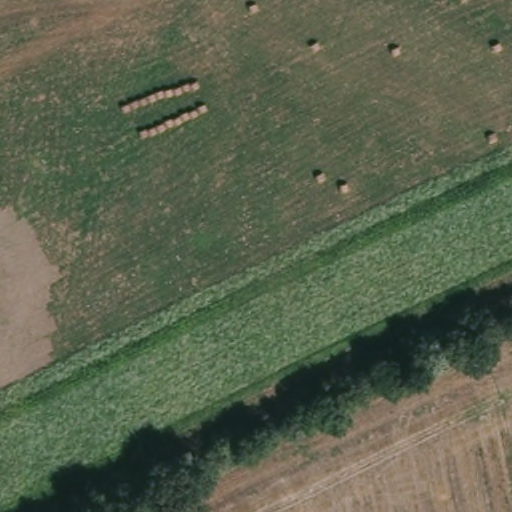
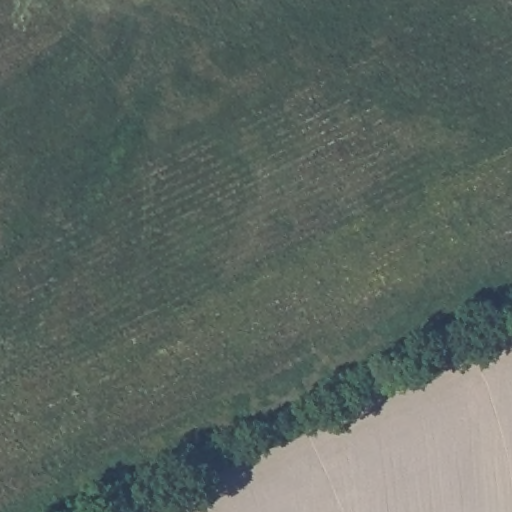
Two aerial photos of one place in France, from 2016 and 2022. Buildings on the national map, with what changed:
[]

